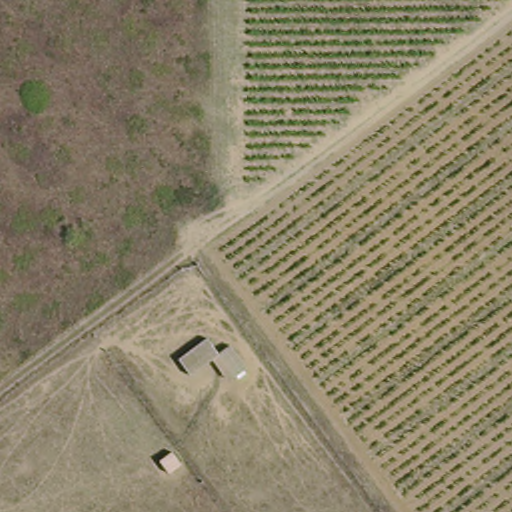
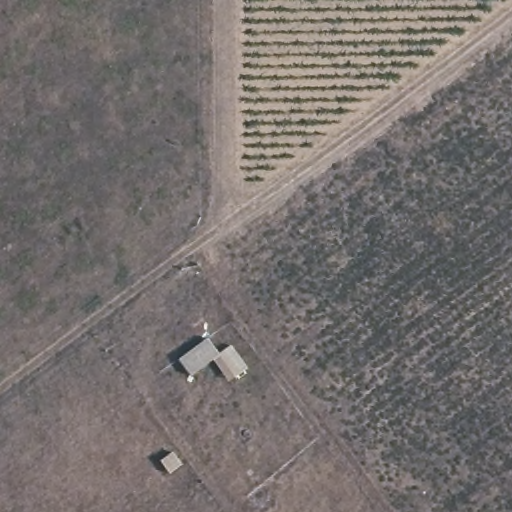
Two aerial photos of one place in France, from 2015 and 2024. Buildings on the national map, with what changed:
unchanged [(205,341),(215,357),(192,372),(182,356),(205,341)]
unchanged [(229,345),(249,372),(238,380),(219,352),(229,345)]

